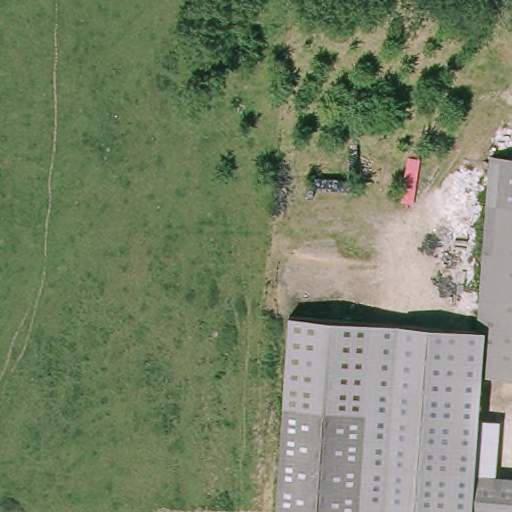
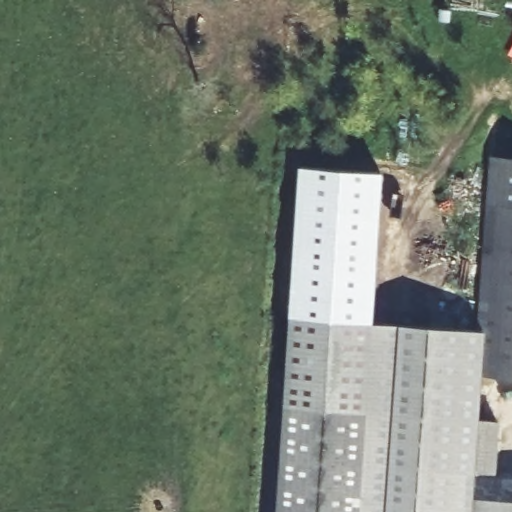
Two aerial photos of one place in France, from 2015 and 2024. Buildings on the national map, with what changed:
unchanged [(478,342),(479,329),(491,155),(512,156),(512,370),(476,367),(478,342)]
new [(301,167),(382,172),(372,322),(291,317),(301,167)]
unchanged [(368,322),(479,329),(478,342),(476,367),(471,472),(470,512),(280,512),(286,407),(291,317),(368,322)]
unchanged [(482,472),(484,438),(497,439),(496,473),(512,474),(512,512),(470,512),(471,472),(482,472)]

